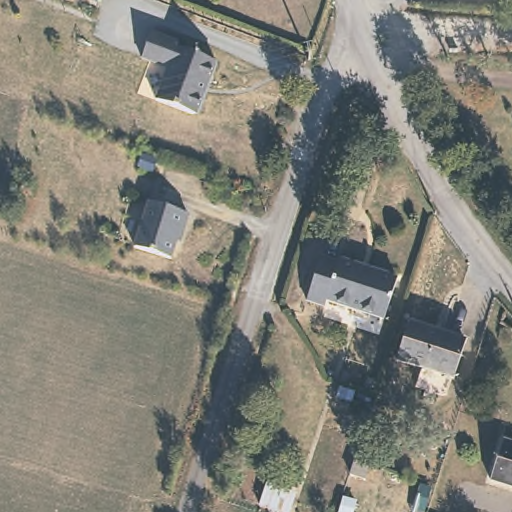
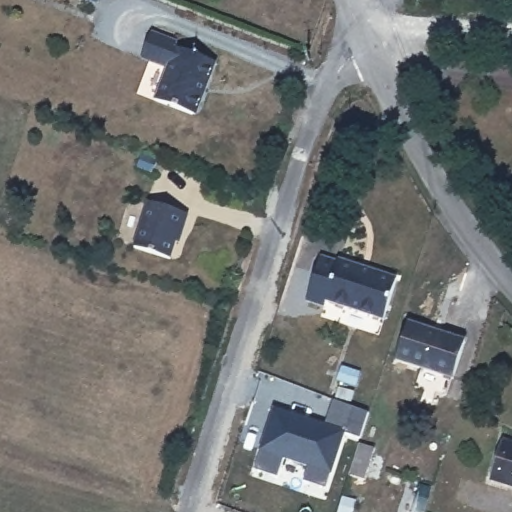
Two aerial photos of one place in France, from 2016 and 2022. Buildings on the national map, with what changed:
unchanged [(153,94),(168,57),(141,47),(151,21),(178,32),(176,37),(217,52),(196,105),(190,109),(153,94)]
unchanged [(139,247),(154,202),(193,215),(187,232),(184,231),(175,258),(139,247)]
unchanged [(338,264),(339,260),(400,276),(388,316),(330,301),(327,307),(306,301),(319,257),(338,264)]
unchanged [(467,338),(455,376),(395,357),(408,321),(467,338)]
new [(360,438),(345,434),(328,489),(304,482),(308,467),(284,460),(278,478),(253,470),(273,407),(326,423),(333,400),(367,412),(360,438)]
unchanged [(512,441),(512,483),(489,476),(502,438),(512,441)]

